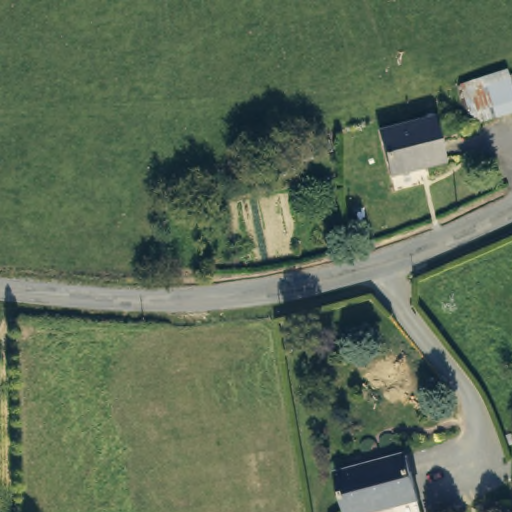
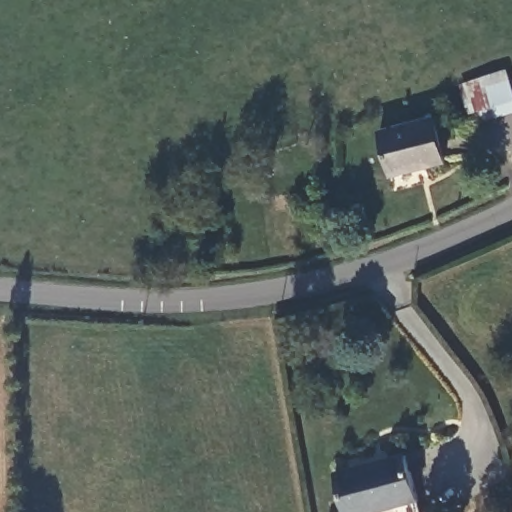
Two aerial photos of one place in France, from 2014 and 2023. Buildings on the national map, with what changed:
unchanged [(458,82),(502,69),(512,104),(512,106),(469,118),(458,82)]
unchanged [(443,162),(393,174),(382,130),(433,118),(443,162)]
unchanged [(419,500),(422,512),(397,512),(395,505),(370,512),(347,512),(338,475),(408,457),(419,500)]

